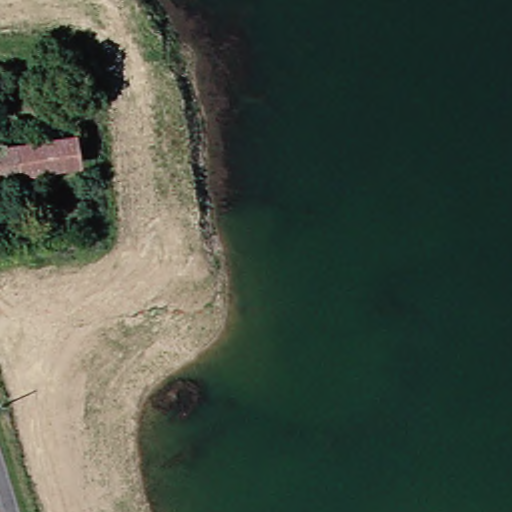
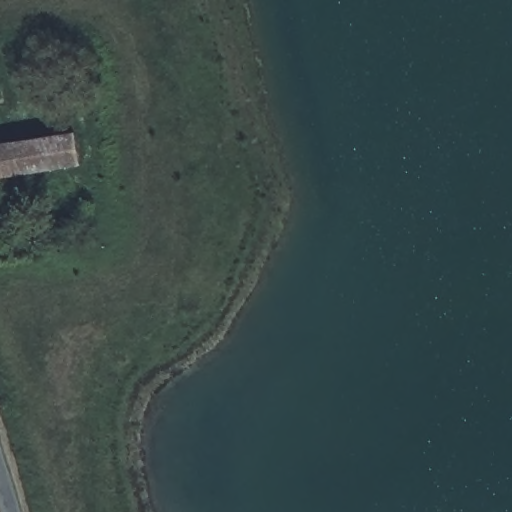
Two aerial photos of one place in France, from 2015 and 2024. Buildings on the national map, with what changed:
unchanged [(71,167),(0,176),(0,146),(68,137),(71,167)]

